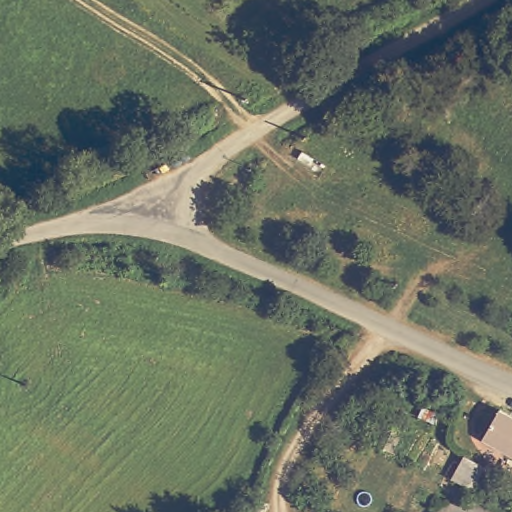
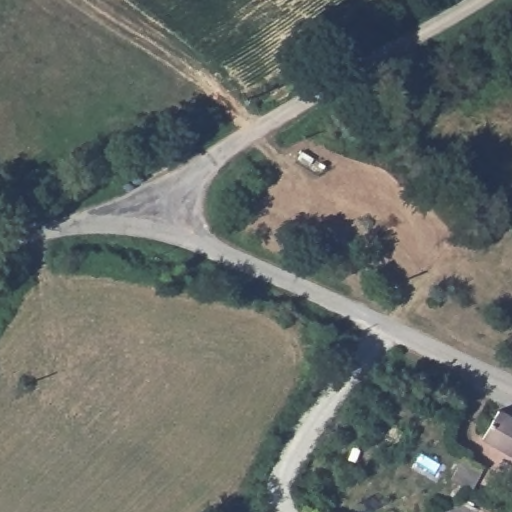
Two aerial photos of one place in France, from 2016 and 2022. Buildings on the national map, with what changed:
unchanged [(483,437),(500,408),(512,414),(512,454),(483,437)]
unchanged [(395,463),(379,455),(392,425),(408,433),(395,463)]
unchanged [(472,494),(452,484),(464,460),(484,470),(472,494)]

